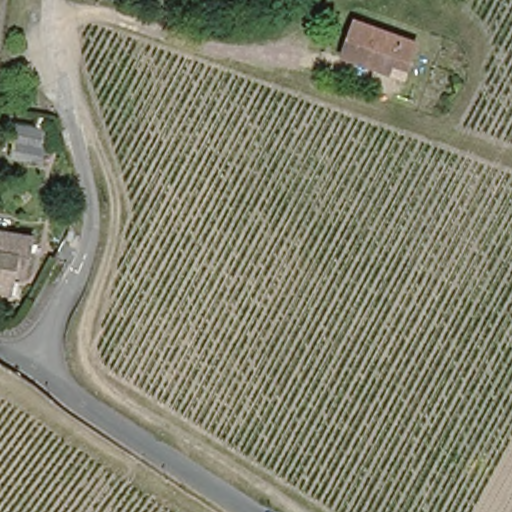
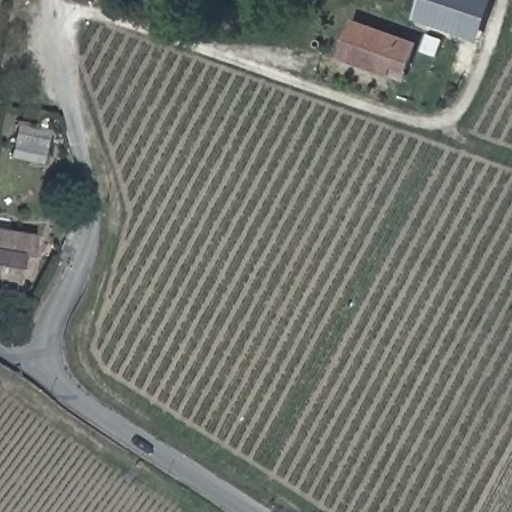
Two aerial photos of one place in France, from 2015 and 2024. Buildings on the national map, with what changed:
new [(414,18),(421,0),(492,0),(479,40),(414,18)]
unchanged [(417,42),(407,67),(394,62),(388,72),(345,56),(358,20),(417,42)]
unchanged [(46,132),(40,165),(9,159),(14,126),(46,132)]
unchanged [(29,233),(21,273),(14,272),(12,277),(0,275),(0,228),(29,233)]

